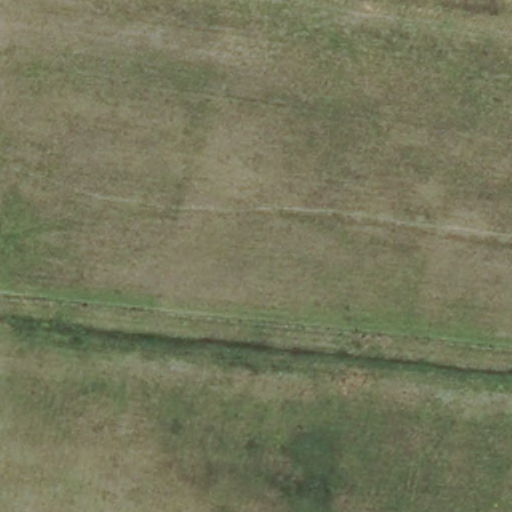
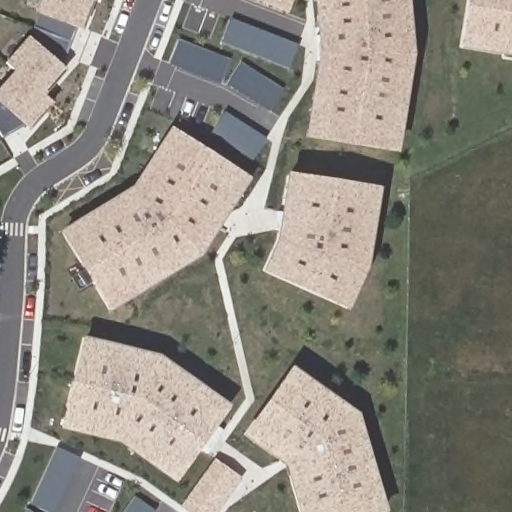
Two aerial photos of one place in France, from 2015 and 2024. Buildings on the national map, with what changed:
new [(28,40),(34,25),(39,11),(44,0),(89,0),(79,26),(73,41),(61,69),(42,91),(9,62),(28,40)]
new [(259,0),(293,0),(288,11),(259,0)]
new [(395,149),(307,135),(323,50),(317,0),(405,0),(410,57),(395,149)]
new [(507,49),(506,54),(473,48),(461,46),(469,0),(474,0),(512,0),(512,50),(507,49)]
new [(297,44),(289,67),(223,45),(231,21),(297,44)]
new [(170,62),(180,39),(229,60),(219,83),(170,62)]
new [(507,49),(512,50),(512,61),(505,60),(507,49)]
new [(0,96),(0,91),(18,70),(42,91),(51,100),(30,122),(0,96)]
new [(0,96),(23,116),(2,139),(0,135),(0,96)]
new [(175,262),(175,261),(171,256),(145,272),(149,278),(123,293),(120,287),(104,297),(63,231),(133,187),(172,130),(235,171),(246,179),(226,210),(220,207),(216,204),(207,219),(211,221),(193,250),(175,262)]
new [(292,226),(286,225),(283,243),(279,252),(286,255),(277,275),(265,270),(278,241),(288,175),(301,177),(292,226)]
new [(355,246),(362,247),(359,266),(349,287),(343,285),(335,301),(277,275),(286,255),(279,252),(283,243),(286,225),(292,226),(301,177),(365,187),(362,206),(368,207),(366,225),(359,225),(355,246)]
new [(364,266),(346,306),(335,301),(343,285),(349,287),(359,266),(362,247),(355,246),(359,225),(366,225),(368,207),(362,206),(365,187),(376,190),(364,266)]
new [(222,228),(207,219),(216,204),(231,213),(222,228)]
new [(110,307),(104,297),(120,287),(123,293),(149,278),(145,272),(171,256),(175,262),(193,250),(211,221),(217,225),(198,254),(110,307)]
new [(226,406),(219,416),(204,405),(208,400),(193,388),(189,394),(152,368),(118,360),(120,353),(102,349),(100,355),(81,351),(84,340),(158,356),(226,406)]
new [(204,405),(219,416),(181,469),(166,458),(162,463),(147,453),(151,447),(136,436),(132,442),(121,435),(83,425),(85,419),(66,415),(81,351),(100,355),(102,349),(120,353),(118,360),(152,368),(189,394),(193,388),(208,400),(204,405)]
new [(288,463),(258,442),(248,436),(292,370),(302,376),(343,404),(357,413),(360,423),(365,444),(358,445),(363,462),(370,461),(380,498),(383,510),(377,512),(302,512),(288,463)]
new [(151,447),(147,453),(162,463),(166,458),(181,469),(174,478),(119,440),(63,426),(66,415),(85,419),(83,425),(121,435),(132,442),(136,436),(151,447)]
new [(207,454),(197,446),(214,423),(224,431),(207,454)]
new [(373,460),(363,462),(358,445),(368,443),(373,460)]
new [(57,449),(78,459),(53,512),(32,501),(57,449)]
new [(219,512),(191,512),(181,506),(211,462),(239,481),(219,512)]
new [(134,497),(154,511),(154,512),(123,512),(134,497)]

